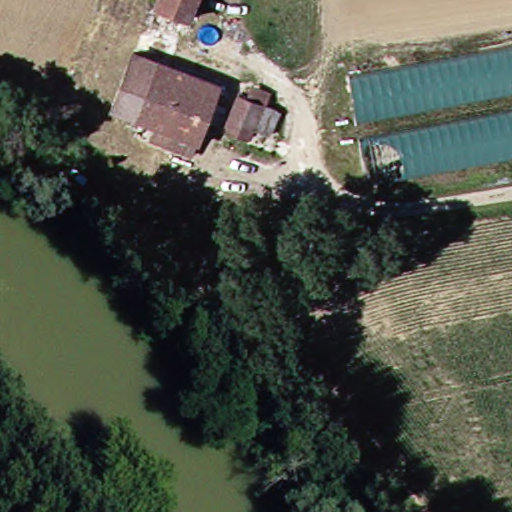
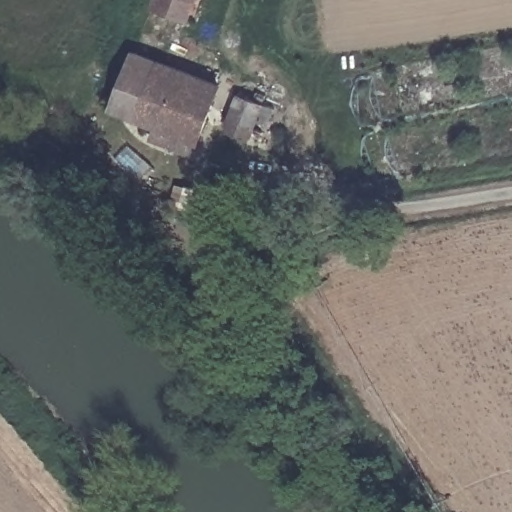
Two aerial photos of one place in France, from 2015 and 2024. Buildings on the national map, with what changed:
unchanged [(155,0),(187,0),(182,15),(151,10),(155,0)]
demolished [(512,44),(512,157),(366,184),(348,75),(512,44)]
unchanged [(210,85),(192,144),(106,117),(125,59),(210,85)]
unchanged [(220,142),(229,113),(238,84),(264,91),(261,99),(269,101),(260,130),(247,134),(242,149),(220,142)]

